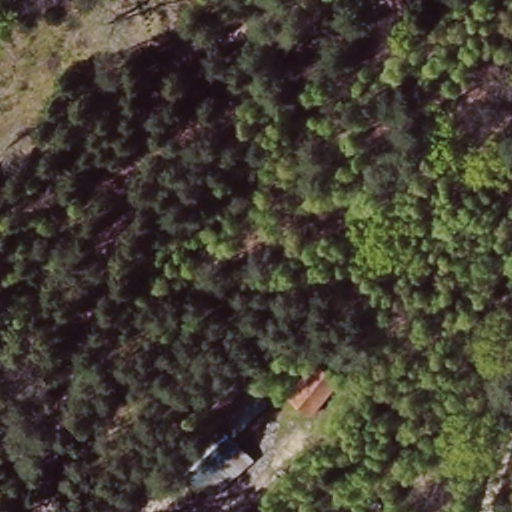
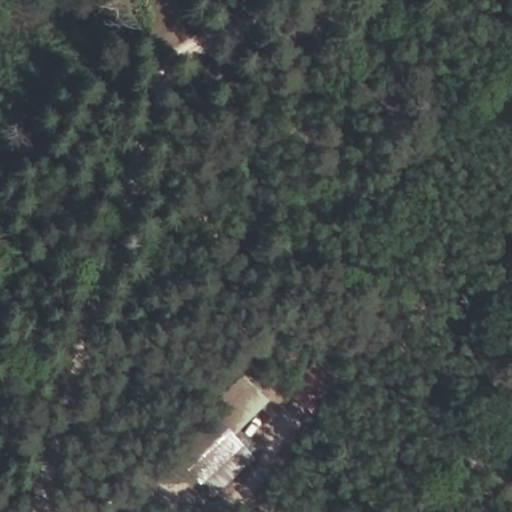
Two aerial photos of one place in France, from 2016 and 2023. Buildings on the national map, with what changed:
unchanged [(316,362),(352,389),(322,427),(288,401),(316,362)]
unchanged [(168,451),(243,377),(267,405),(233,436),(257,468),(214,502),(168,451)]

